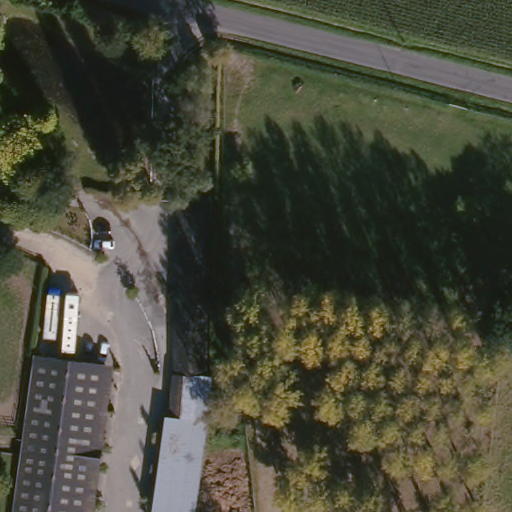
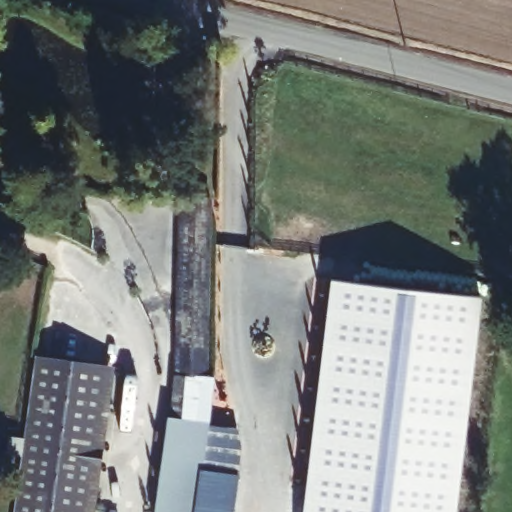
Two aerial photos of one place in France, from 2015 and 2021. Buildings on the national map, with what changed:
demolished [(184,192),(205,192),(205,418),(181,415),(184,192)]
new [(167,417),(170,417),(175,375),(178,195),(212,196),(207,377),(213,378),(208,423),(195,512),(153,512),(167,417)]
new [(480,297),(454,512),(304,512),(329,280),(480,297)]
unchanged [(37,352),(108,359),(94,512),(22,512),(37,352)]

